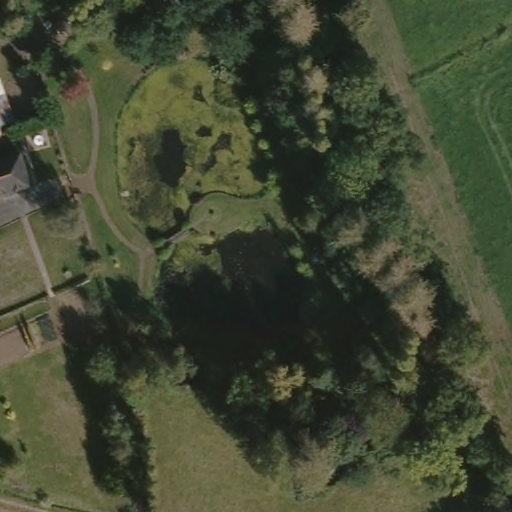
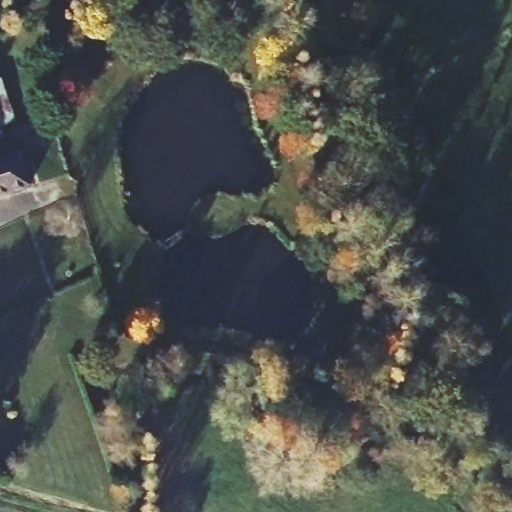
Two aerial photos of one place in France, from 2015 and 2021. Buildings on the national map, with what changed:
unchanged [(13,124),(0,129),(0,88),(13,124)]
unchanged [(0,143),(0,134),(3,141),(0,143)]
unchanged [(21,160),(30,190),(30,191),(0,202),(0,165),(21,160)]

